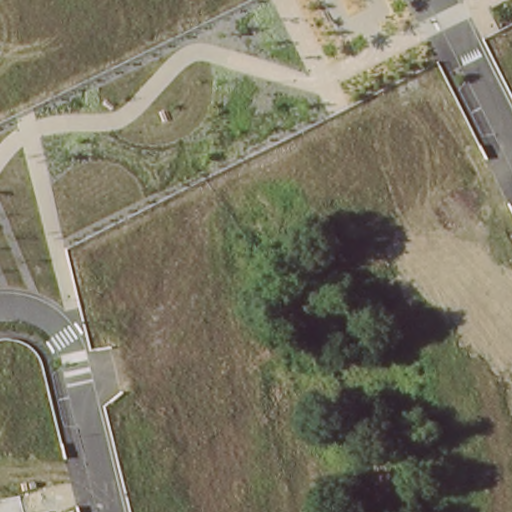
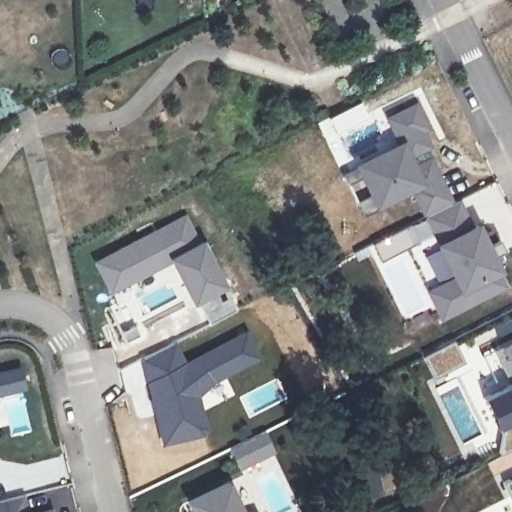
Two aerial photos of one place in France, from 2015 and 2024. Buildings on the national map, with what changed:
new [(366,219),(345,177),(361,169),(404,147),(391,120),(417,108),(427,128),(423,130),(431,147),(422,151),(428,164),(433,161),(454,204),(427,217),(414,189),(379,207),(382,212),(366,219)]
new [(454,204),(464,199),(478,229),(484,225),(509,275),(505,278),(511,290),(443,323),(429,293),(457,278),(427,217),(454,204)]
new [(188,214),(203,238),(168,258),(171,263),(110,296),(93,262),(188,214)]
new [(208,323),(197,302),(193,304),(171,263),(168,258),(203,238),(228,285),(237,307),(208,323)]
new [(176,339),(186,359),(249,330),(263,359),(200,395),(207,419),(206,428),(203,436),(196,439),(161,448),(138,358),(176,339)]
new [(512,340),(512,422),(496,430),(479,399),(499,390),(482,356),(512,340)]
new [(265,429),(276,454),(239,471),(228,448),(265,429)]
new [(512,449),(512,467),(493,476),(486,462),(512,449)]
new [(386,466),(393,498),(371,503),(364,471),(386,466)]
new [(231,478),(245,512),(183,512),(179,505),(231,478)]
new [(26,512),(0,512),(0,500),(21,494),(26,512)]
new [(256,508),(258,512),(245,512),(256,508)]
new [(50,510),(50,512),(42,512),(50,510)]

